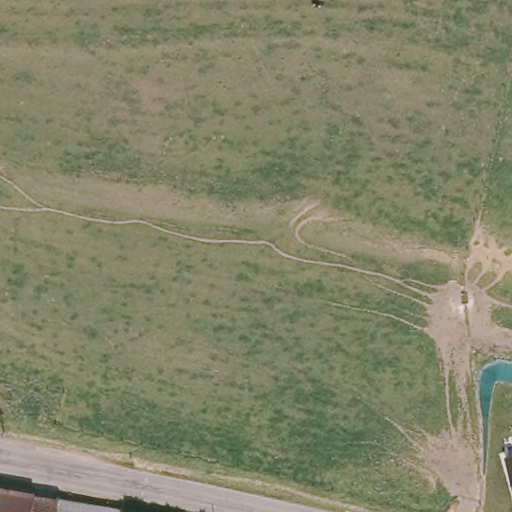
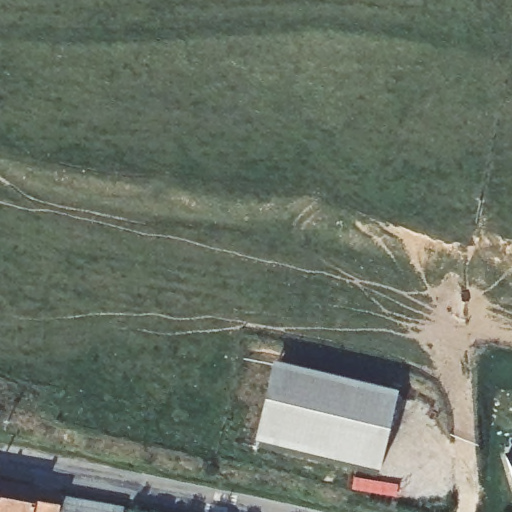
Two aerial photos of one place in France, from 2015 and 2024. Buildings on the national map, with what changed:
new [(397,394),(377,476),(253,446),(273,364),(397,394)]
unchanged [(512,453),(512,481),(505,455),(512,453)]
unchanged [(105,503),(118,506),(128,508),(128,512),(0,512),(0,484),(105,503)]

